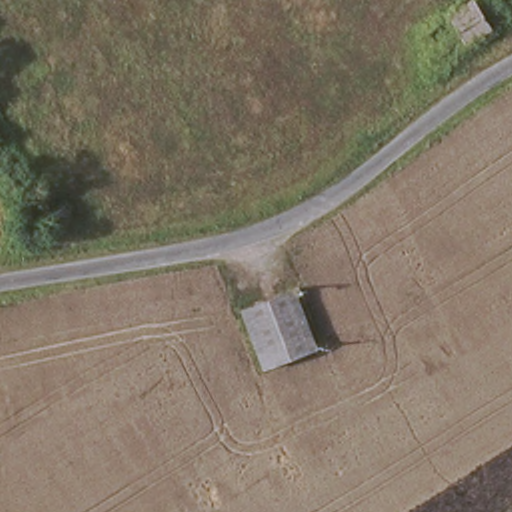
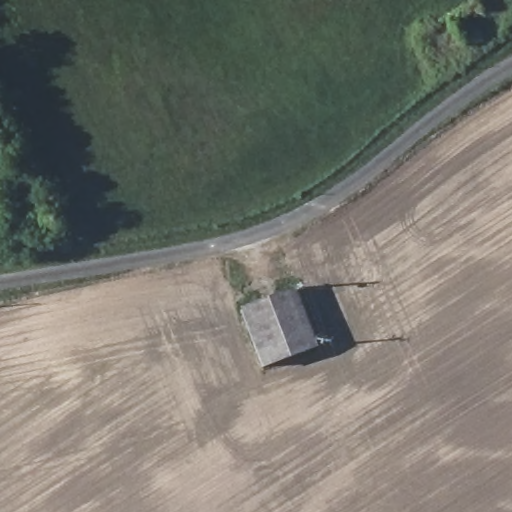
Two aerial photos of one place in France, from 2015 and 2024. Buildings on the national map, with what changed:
unchanged [(465,0),(483,0),(497,24),(441,56),(421,25),(465,0)]
unchanged [(266,369),(242,310),(292,283),(323,350),(266,369)]

